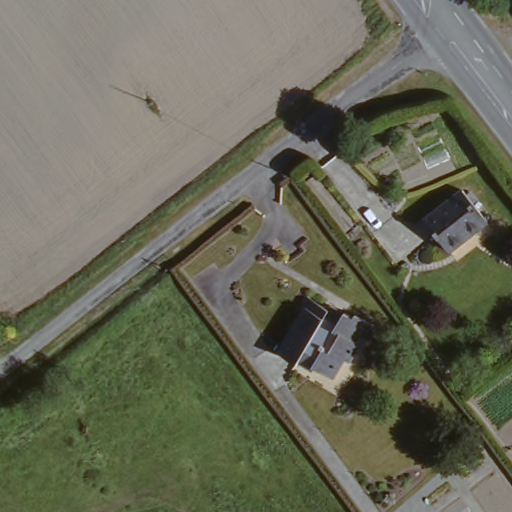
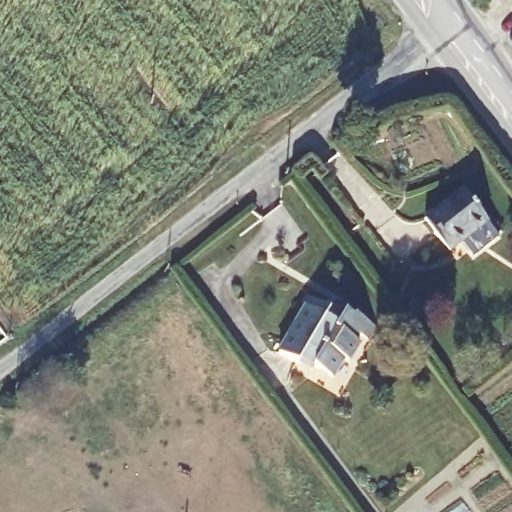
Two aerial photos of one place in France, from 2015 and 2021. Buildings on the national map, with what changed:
unchanged [(461,193),(485,225),(449,253),(424,220),(461,193)]
unchanged [(279,363),(306,318),(302,315),(308,304),(346,325),(349,319),(356,324),(358,321),(380,332),(373,345),(362,339),(357,349),(362,351),(354,367),(347,364),(334,382),(317,371),(313,377),(300,370),(297,375),(279,363)]

